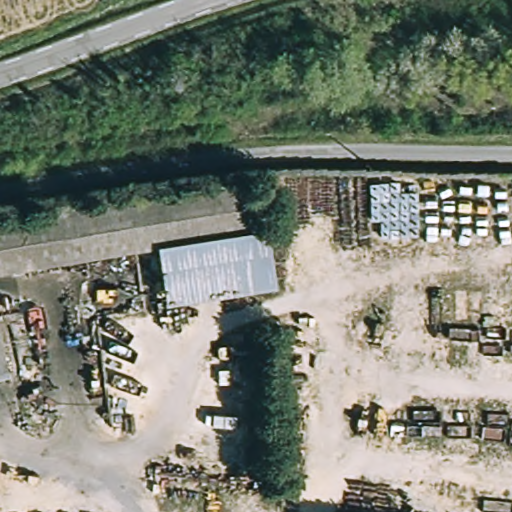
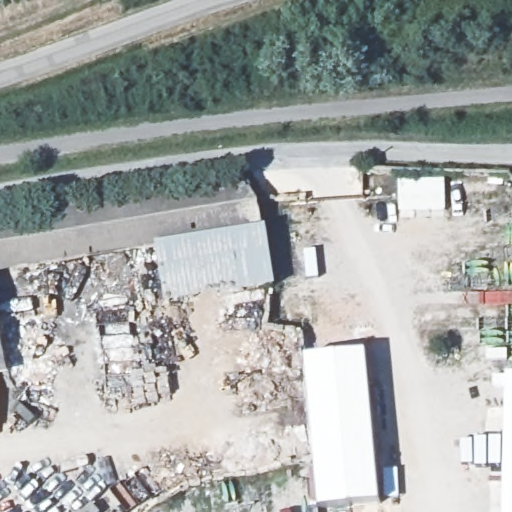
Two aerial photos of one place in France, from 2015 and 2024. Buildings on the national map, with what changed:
unchanged [(254,171),(273,284),(165,304),(156,249),(0,274),(0,210),(254,171)]
unchanged [(0,369),(0,339),(5,369),(0,369)]
new [(369,354),(382,505),(329,512),(321,512),(306,359),(369,354)]
new [(510,378),(512,378),(512,512),(507,512),(510,378)]

